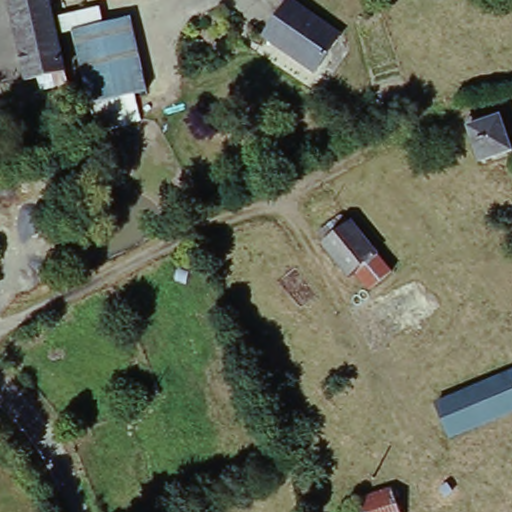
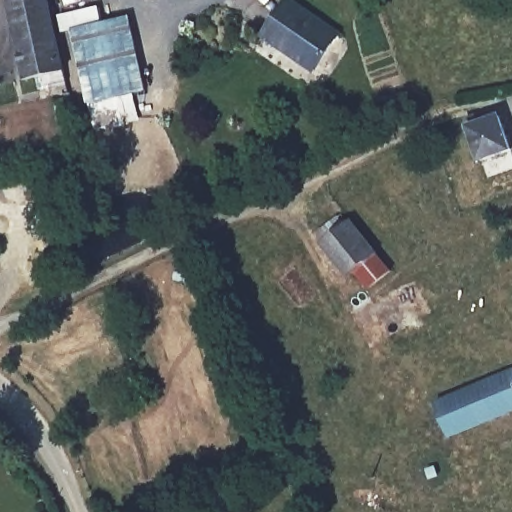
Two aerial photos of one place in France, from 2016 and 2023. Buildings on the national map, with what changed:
unchanged [(13,0),(50,0),(70,70),(58,75),(60,86),(46,88),(44,77),(32,81),(10,1),(13,0)]
unchanged [(346,35),(319,69),(301,57),(304,52),(271,34),(294,0),(295,0),(346,35)]
unchanged [(78,30),(75,14),(104,7),(108,23),(134,17),(151,91),(95,104),(78,30)]
unchanged [(512,156),(486,166),(471,124),(482,120),(483,126),(505,119),(512,139),(512,156)]
unchanged [(343,223),(352,231),(368,218),(395,249),(388,255),(399,271),(376,294),(361,276),(355,280),(329,249),(331,247),(324,239),(343,223)]
unchanged [(450,395),(512,372),(512,410),(462,428),(450,395)]
unchanged [(368,512),(363,500),(398,488),(408,512),(368,512)]

